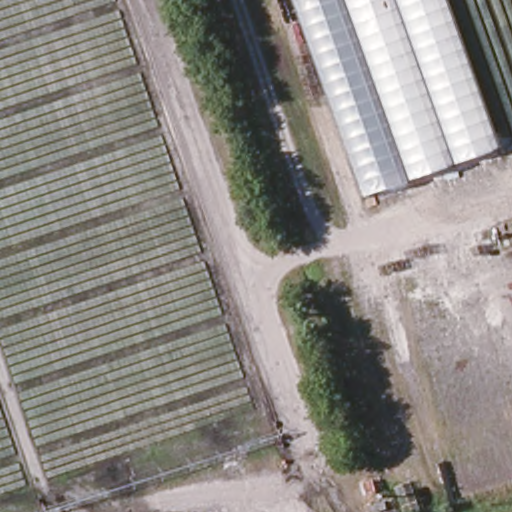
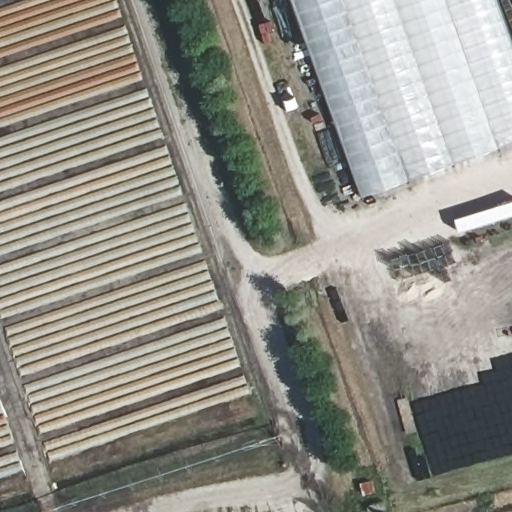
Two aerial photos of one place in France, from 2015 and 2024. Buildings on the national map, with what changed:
unchanged [(292,0),(448,0),(500,147),(365,196),(292,0)]
new [(512,143),(500,147),(448,0),(497,0),(512,41),(512,143)]

